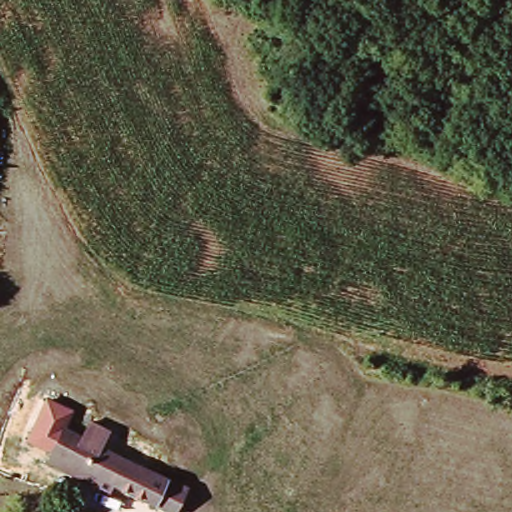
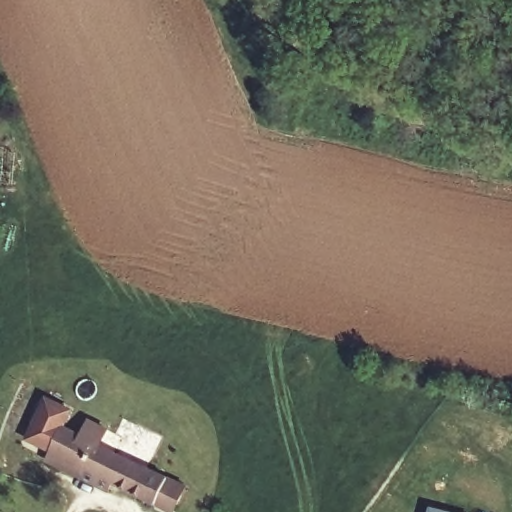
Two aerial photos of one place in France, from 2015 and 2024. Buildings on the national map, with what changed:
unchanged [(112,452),(121,435),(168,460),(159,476),(185,490),(174,512),(166,512),(47,452),(60,427),(84,439),(88,429),(105,435),(99,446),(112,452)]
new [(451,512),(428,512),(430,506),(451,512)]

